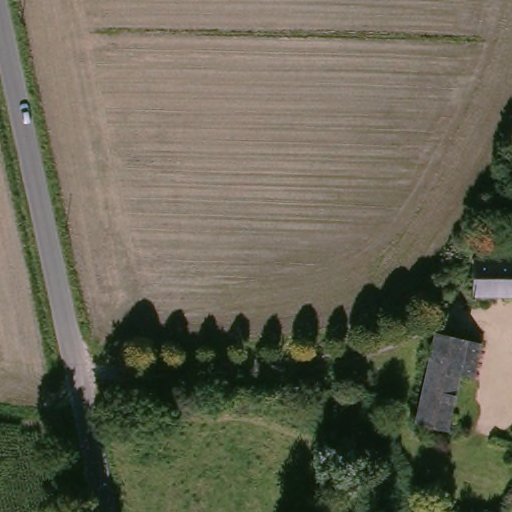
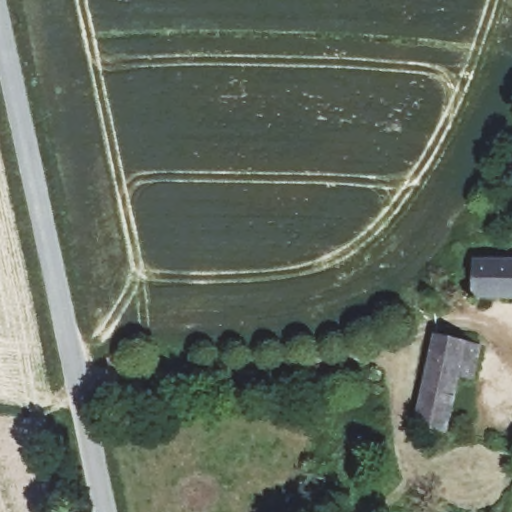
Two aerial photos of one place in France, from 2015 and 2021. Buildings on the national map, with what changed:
unchanged [(478,287),(477,249),(512,250),(512,289),(478,287)]
unchanged [(436,339),(471,347),(462,382),(447,379),(434,429),(415,425),(436,339)]

